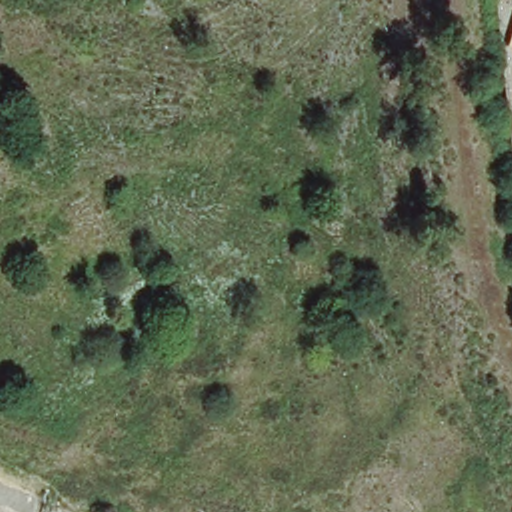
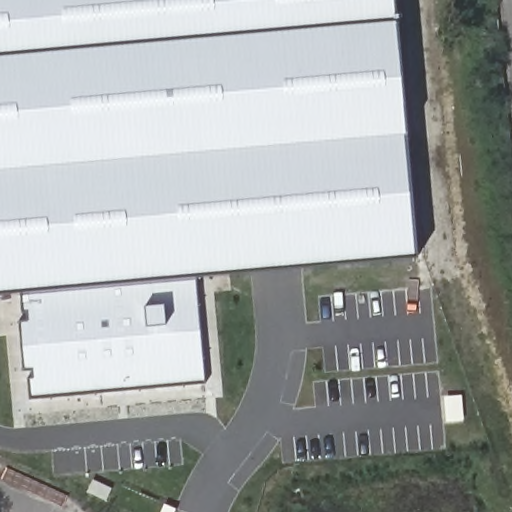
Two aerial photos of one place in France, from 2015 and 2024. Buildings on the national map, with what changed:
new [(424,266),(193,284),(200,382),(20,396),(12,298),(0,298),(0,0),(398,0),(424,266)]

